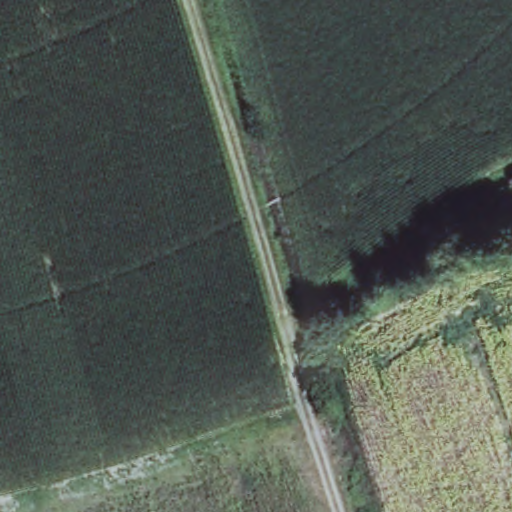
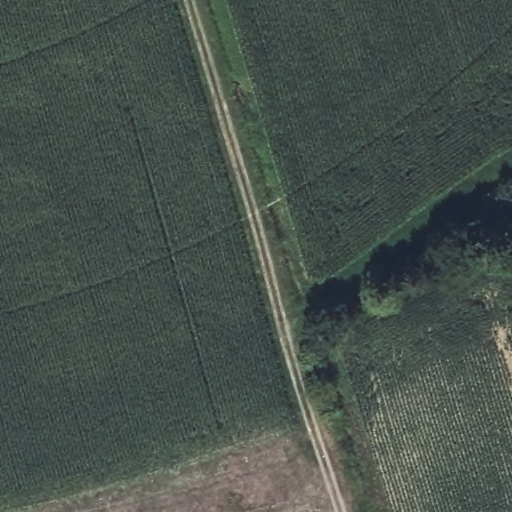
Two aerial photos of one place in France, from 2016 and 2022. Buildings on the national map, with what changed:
unchanged [(512,232),(502,179),(512,176),(512,232)]

